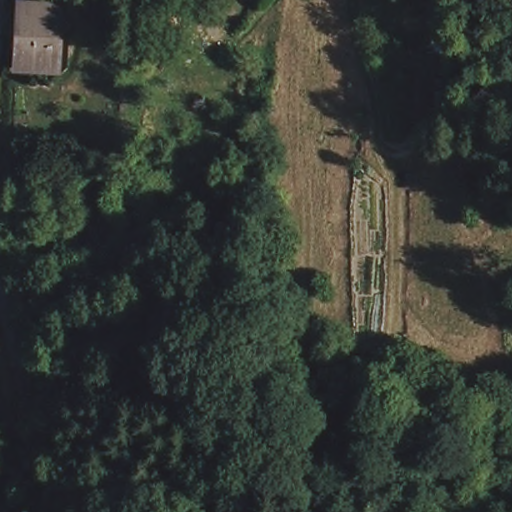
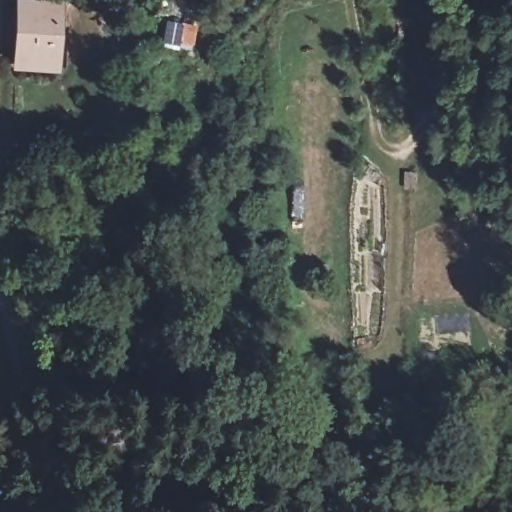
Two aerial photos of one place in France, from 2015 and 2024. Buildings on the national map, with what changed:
unchanged [(55,70),(15,68),(21,2),(21,0),(39,0),(39,3),(60,5),(55,70)]

